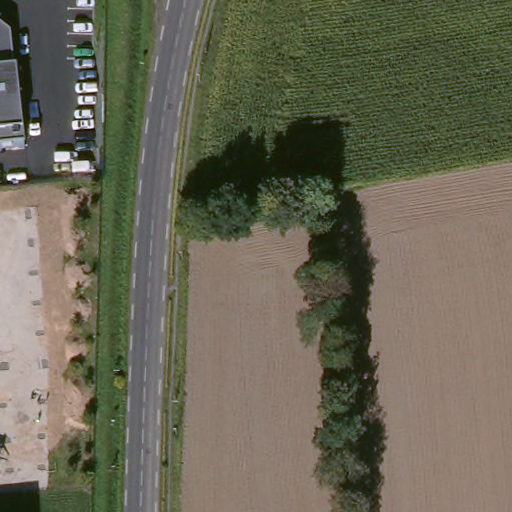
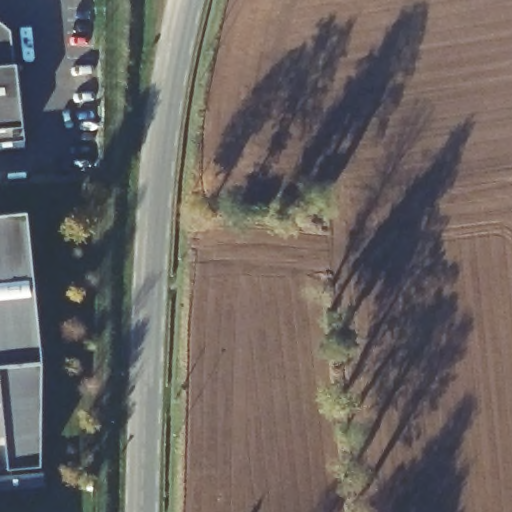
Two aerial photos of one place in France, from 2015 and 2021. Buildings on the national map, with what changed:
unchanged [(14,26),(18,66),(24,138),(0,141),(0,17),(14,26)]
new [(44,360),(43,467),(10,471),(1,367),(0,367),(0,216),(30,213),(44,360)]

